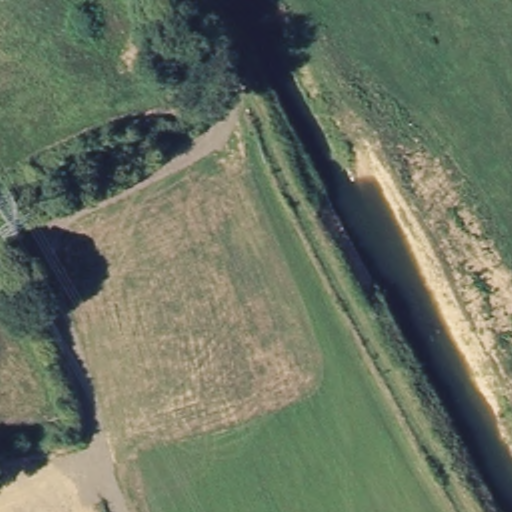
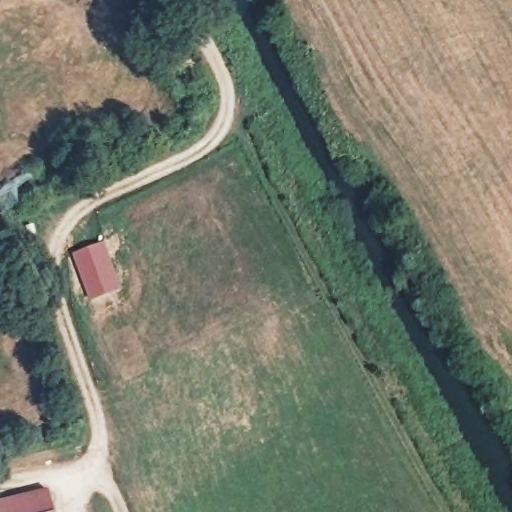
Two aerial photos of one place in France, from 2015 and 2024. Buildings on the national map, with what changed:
new [(122,290),(90,300),(72,252),(106,240),(122,290)]
new [(0,512),(0,501),(47,490),(53,512),(0,512)]

